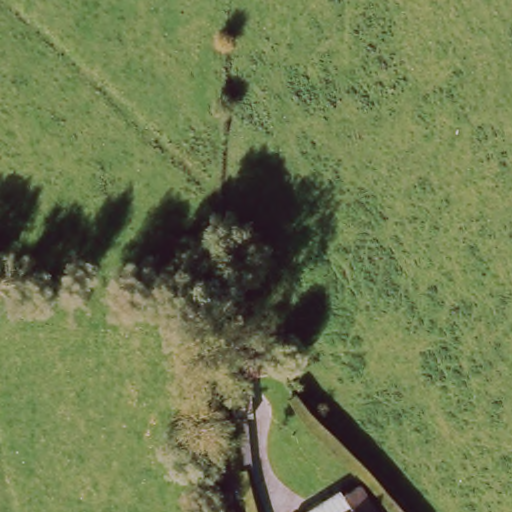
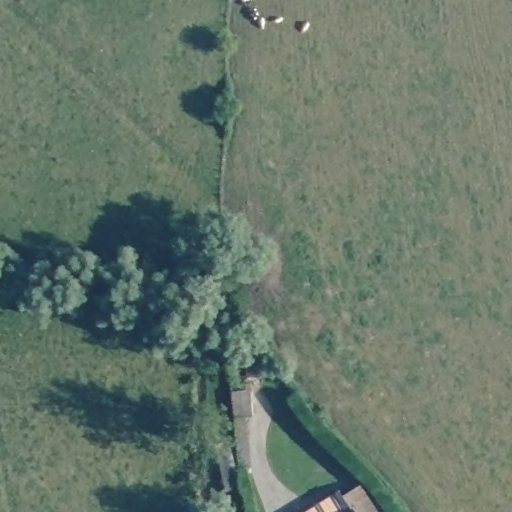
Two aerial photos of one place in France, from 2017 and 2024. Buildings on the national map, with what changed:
unchanged [(240,462),(234,417),(244,416),(249,461),(240,462)]
unchanged [(342,498),(357,487),(374,512),(296,512),(337,488),(342,498)]

